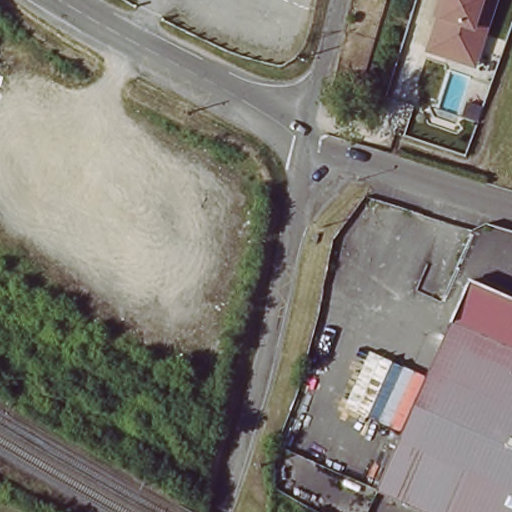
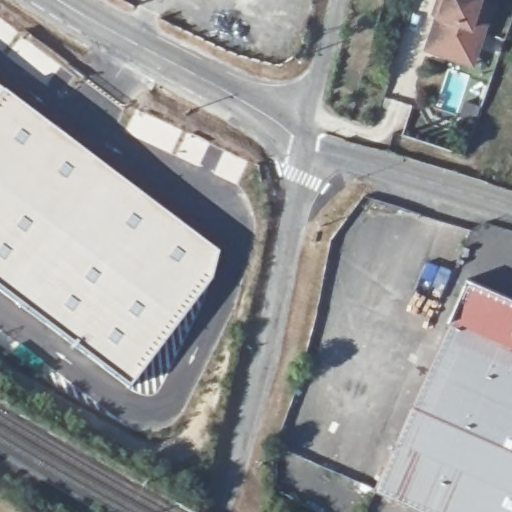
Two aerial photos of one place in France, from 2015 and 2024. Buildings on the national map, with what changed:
unchanged [(425,52),(437,18),(434,17),(439,0),(499,0),(477,67),(425,52)]
new [(213,276),(210,283),(130,388),(0,290),(0,88),(220,252),(213,276)]
unchanged [(450,318),(467,278),(512,298),(512,346),(450,318)]
unchanged [(450,321),(512,348),(512,512),(424,512),(375,491),(375,488),(450,321)]

